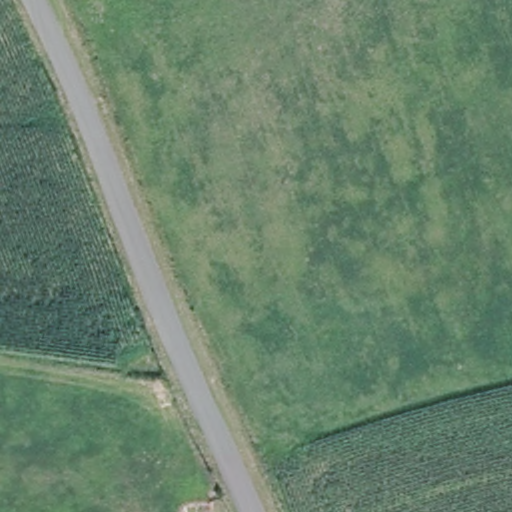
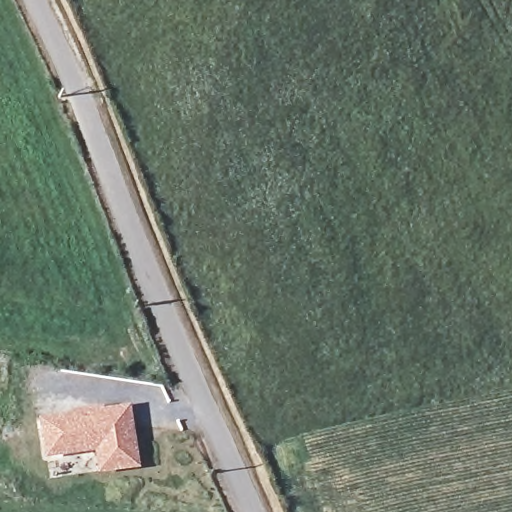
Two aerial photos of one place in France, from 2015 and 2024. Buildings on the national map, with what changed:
new [(37,419),(71,414),(70,410),(103,405),(104,409),(131,404),(141,469),(98,475),(94,450),(43,459),(37,419)]

